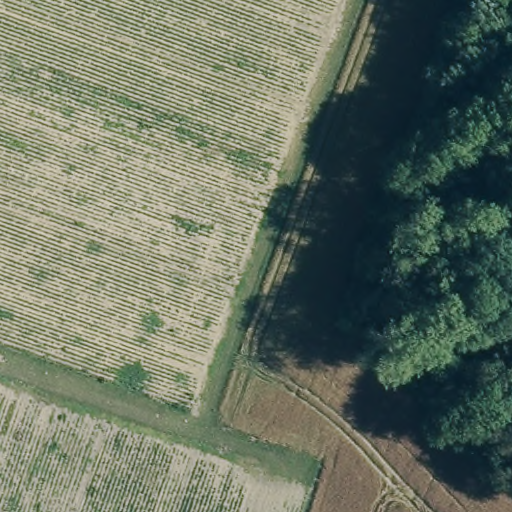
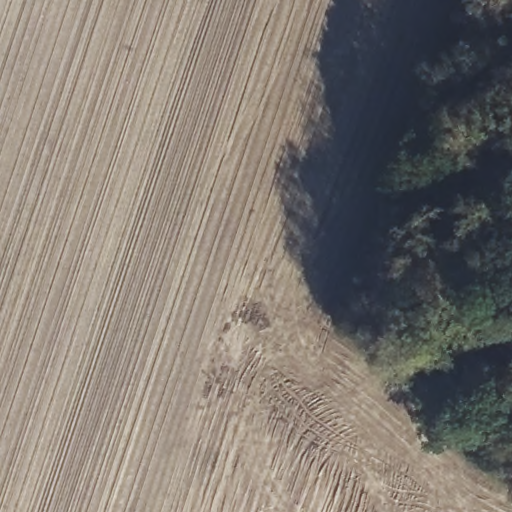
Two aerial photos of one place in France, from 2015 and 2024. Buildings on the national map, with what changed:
[]

